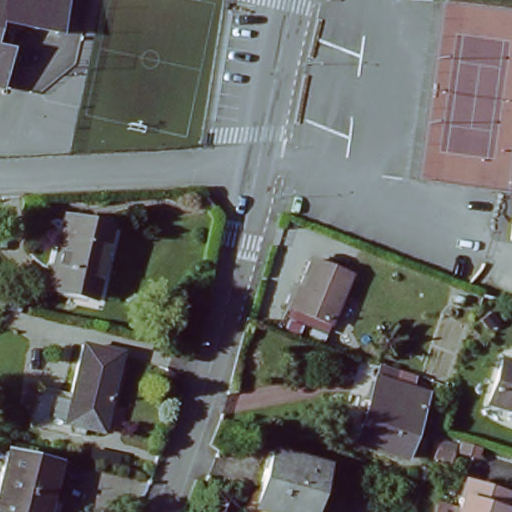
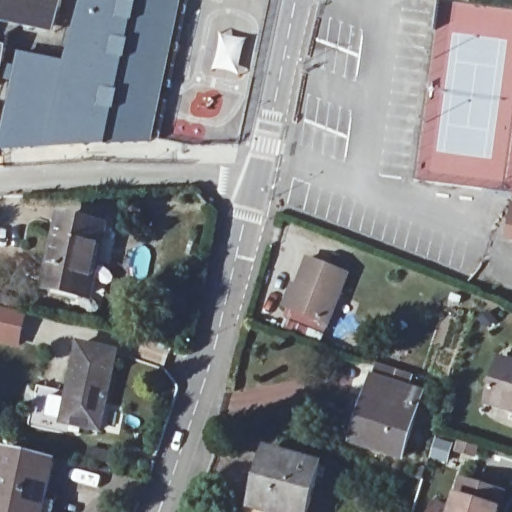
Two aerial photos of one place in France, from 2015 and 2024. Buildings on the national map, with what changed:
unchanged [(46,38),(13,29),(4,37),(0,37),(0,0),(64,0),(58,30),(46,38)]
new [(19,52),(66,61),(82,0),(182,0),(154,142),(0,152),(0,139),(13,81),(1,79),(4,64),(16,66),(19,52)]
unchanged [(0,85),(0,48),(7,50),(0,85)]
unchanged [(509,241),(512,213),(512,242),(509,241)]
unchanged [(101,224),(84,295),(46,286),(63,214),(101,224)]
unchanged [(325,322),(286,306),(305,257),(344,273),(325,322)]
new [(0,342),(0,309),(23,314),(16,345),(0,342)]
unchanged [(119,353),(101,430),(63,420),(81,343),(119,353)]
unchanged [(483,399),(496,357),(512,362),(512,409),(483,399)]
unchanged [(421,395),(401,459),(352,442),(373,378),(421,395)]
unchanged [(255,507),(270,447),(319,464),(306,512),(254,512),(255,507)]
unchanged [(38,500),(53,504),(51,512),(0,512),(0,461),(3,450),(50,464),(38,500)]
unchanged [(497,512),(451,512),(460,486),(501,500),(497,512)]

